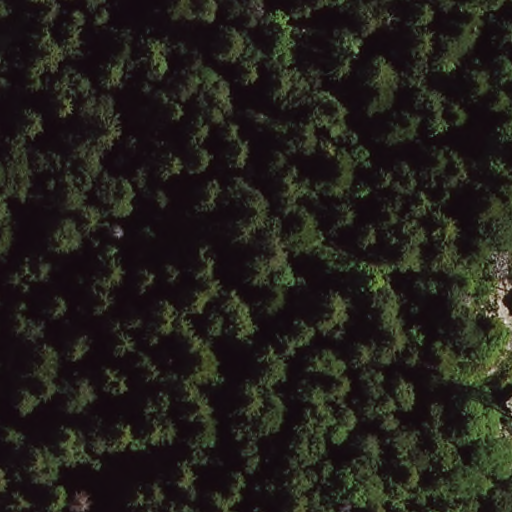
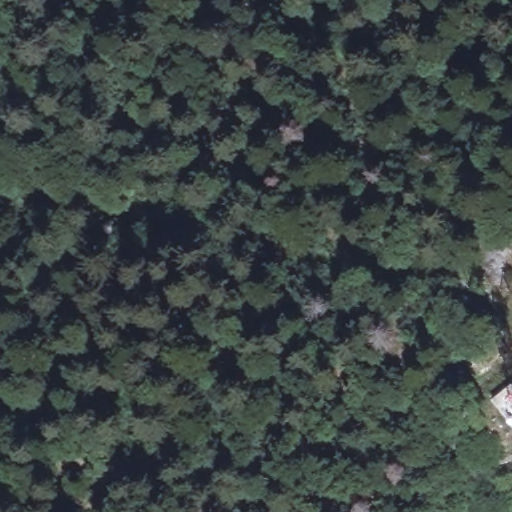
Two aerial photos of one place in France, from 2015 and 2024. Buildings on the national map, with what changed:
unchanged [(512,418),(512,422),(510,419),(512,418)]

